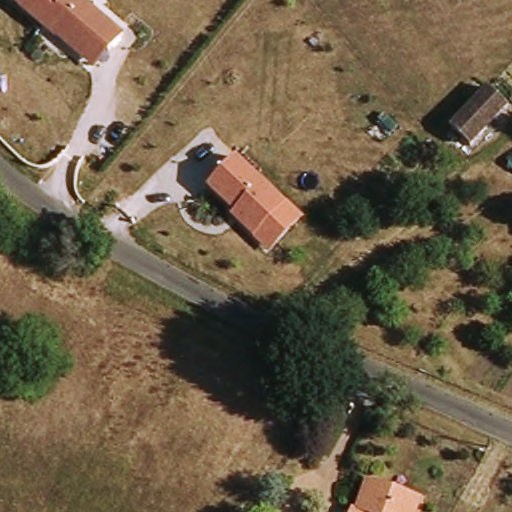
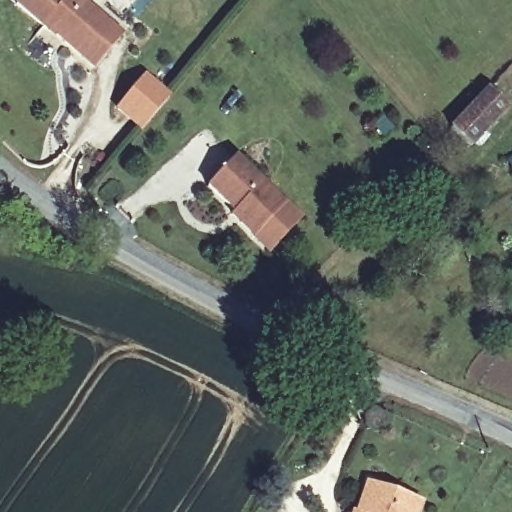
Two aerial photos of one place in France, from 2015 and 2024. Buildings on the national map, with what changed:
unchanged [(44,22),(41,25),(14,2),(16,0),(85,0),(120,29),(106,46),(92,62),(80,53),(44,22)]
new [(143,129),(116,108),(147,70),(173,92),(143,129)]
unchanged [(472,143),(453,126),(488,87),(507,104),(472,143)]
unchanged [(235,209),(208,184),(233,154),(306,218),(274,253),(238,219),(232,214),(235,209)]
unchanged [(34,364),(53,376),(42,396),(22,384),(34,364)]
unchanged [(370,483),(420,502),(417,512),(357,512),(370,483)]

